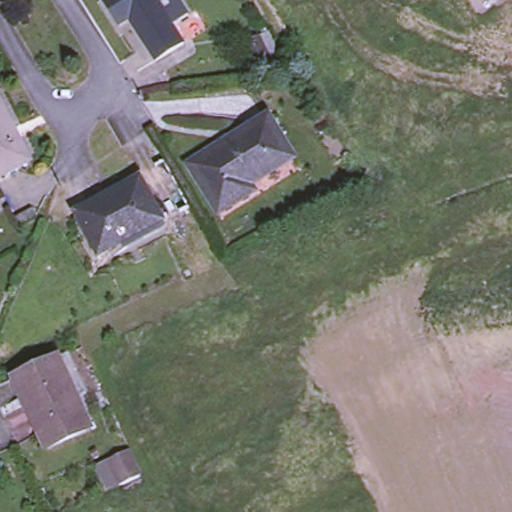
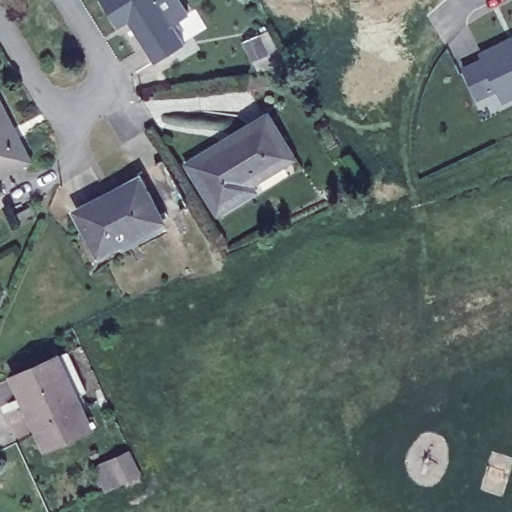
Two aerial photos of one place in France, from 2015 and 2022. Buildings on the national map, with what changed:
unchanged [(182,0),(188,9),(172,20),(184,37),(156,55),(130,16),(119,24),(103,0),(182,0)]
new [(498,93),(479,103),(461,68),(480,56),(479,52),(512,36),(512,99),(503,104),(498,93)]
unchanged [(30,160),(0,176),(0,101),(30,160)]
unchanged [(192,164),(234,136),(233,132),(267,110),(293,150),(250,177),(255,185),(219,207),(192,164)]
unchanged [(139,181),(159,215),(122,236),(126,243),(101,257),(77,215),(139,181)]
unchanged [(53,354),(86,424),(42,444),(24,405),(27,402),(14,371),(53,354)]
unchanged [(123,484),(114,465),(132,455),(142,475),(123,484)]

